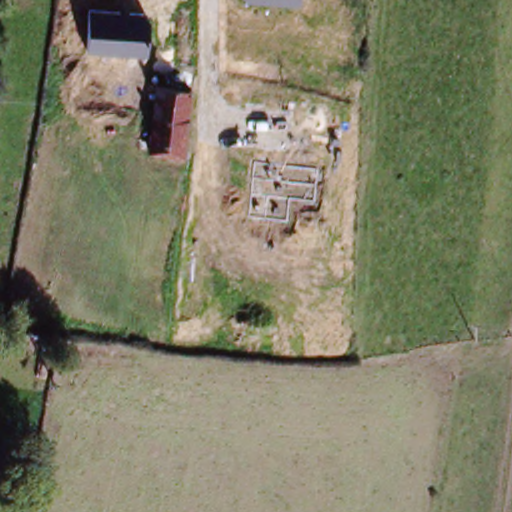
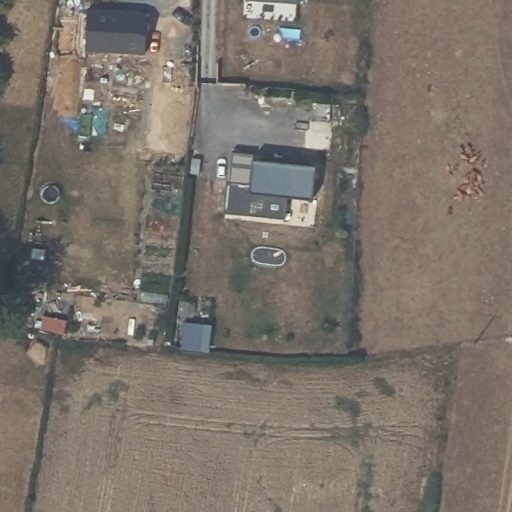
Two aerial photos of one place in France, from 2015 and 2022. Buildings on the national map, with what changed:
unchanged [(298,1),(272,0),(298,0),(298,1)]
unchanged [(90,7),(147,12),(145,52),(87,48),(90,7)]
unchanged [(148,150),(156,94),(158,82),(190,86),(188,98),(180,154),(148,150)]
new [(256,152),(254,160),(317,167),(312,200),(287,198),(285,220),(225,213),(225,217),(212,216),(215,183),(228,183),(230,153),(256,152)]

